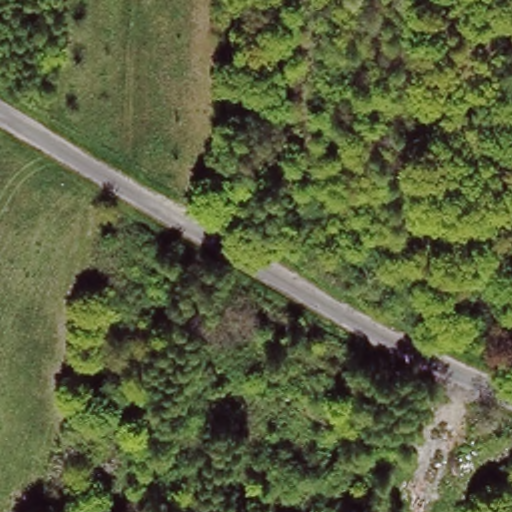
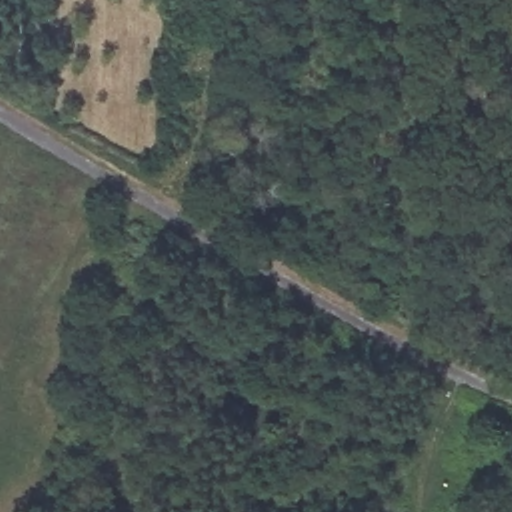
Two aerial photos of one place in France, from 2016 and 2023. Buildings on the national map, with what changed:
[]

